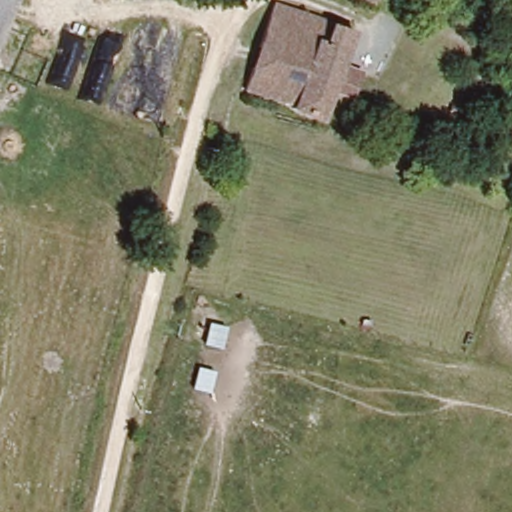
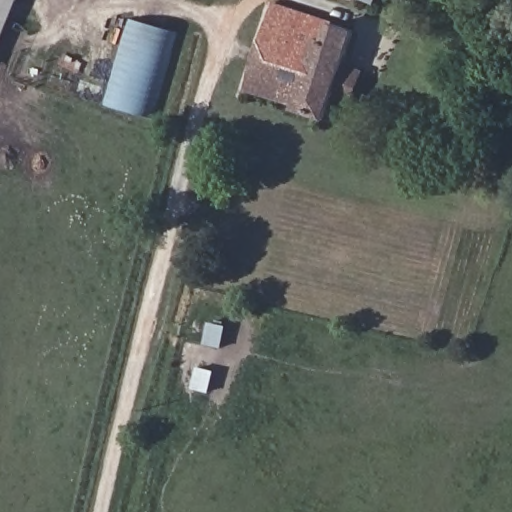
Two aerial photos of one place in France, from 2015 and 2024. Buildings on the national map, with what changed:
demolished [(0,24),(0,0),(7,0),(0,24)]
new [(0,44),(0,0),(18,0),(0,44)]
unchanged [(376,2),(360,0),(376,0),(376,2)]
unchanged [(339,89),(332,119),(305,113),(307,106),(250,92),(272,8),(353,23),(345,62),(362,67),(356,94),(339,89)]
new [(151,118),(104,104),(129,16),(177,31),(151,118)]

